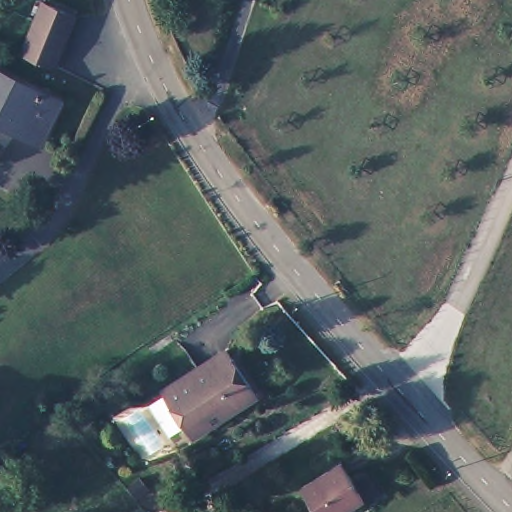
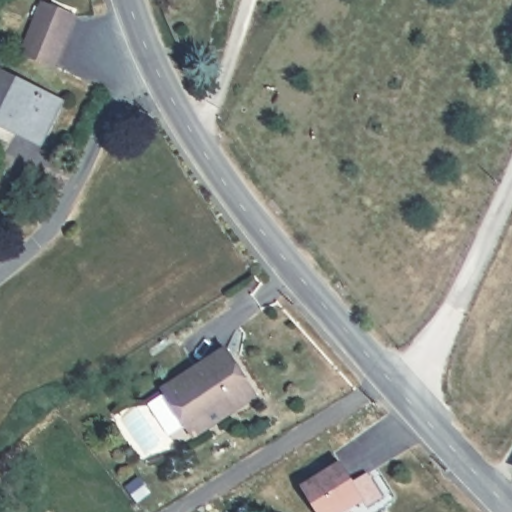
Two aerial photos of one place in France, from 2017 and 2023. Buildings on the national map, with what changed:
unchanged [(42,8),(75,22),(65,42),(52,75),(20,61),(31,29),(42,8)]
unchanged [(33,149),(0,133),(0,84),(52,109),(33,149)]
unchanged [(221,357),(251,403),(231,416),(225,409),(183,435),(158,397),(221,357)]
unchanged [(333,472),(345,491),(360,482),(375,505),(363,512),(358,512),(355,507),(348,512),(306,512),(295,496),(333,472)]
unchanged [(512,478),(512,487),(508,485),(512,478)]

